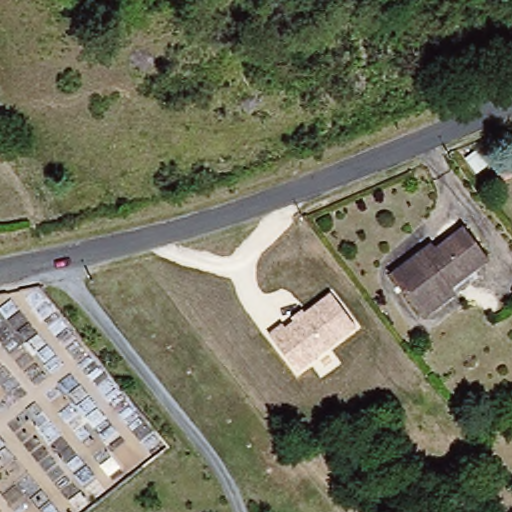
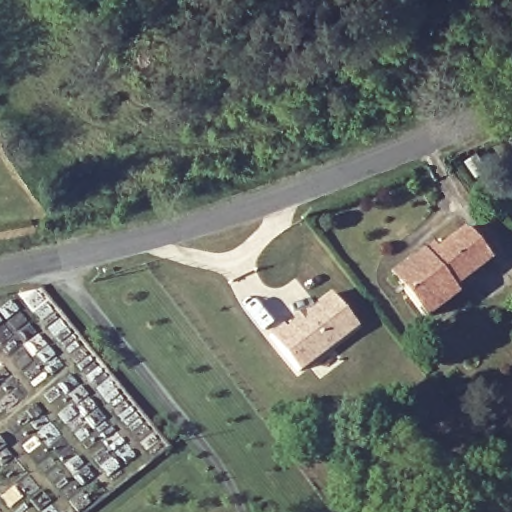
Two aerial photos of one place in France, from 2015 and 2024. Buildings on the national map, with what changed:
unchanged [(432,244),(435,246),(461,226),(485,258),(450,285),(454,291),(425,312),(394,272),(432,244)]
unchanged [(356,329),(297,373),(270,338),(330,295),(356,329)]

